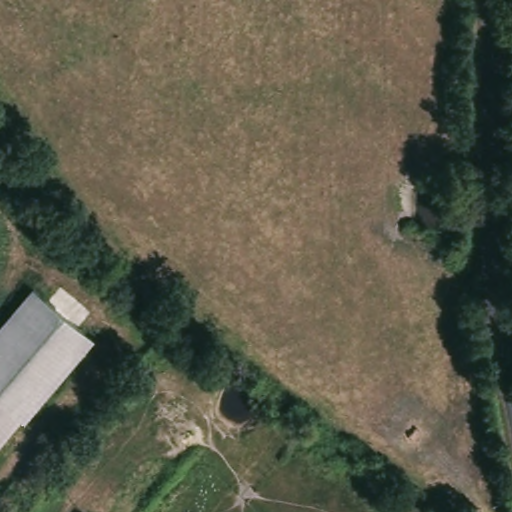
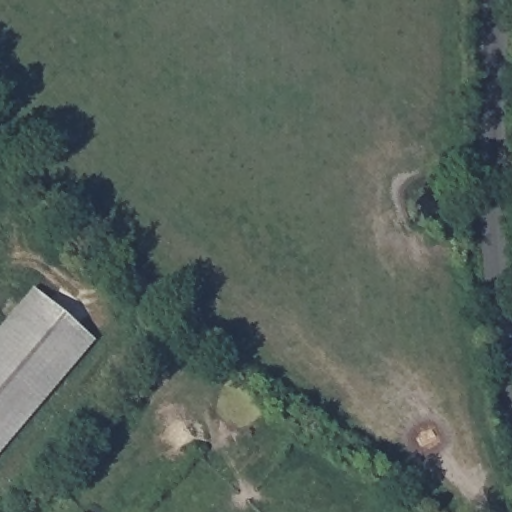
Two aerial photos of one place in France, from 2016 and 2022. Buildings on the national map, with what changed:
unchanged [(0,445),(0,321),(30,285),(92,331),(0,445)]

